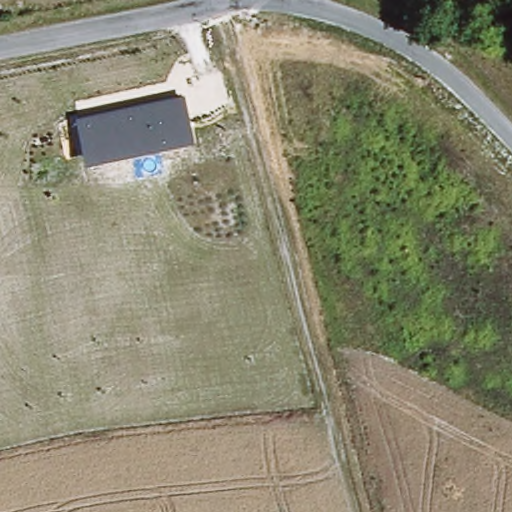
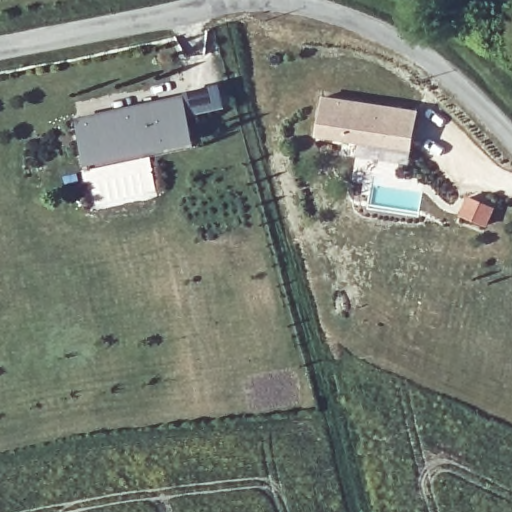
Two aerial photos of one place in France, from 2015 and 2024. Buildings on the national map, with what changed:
unchanged [(186,95),(197,143),(89,166),(79,119),(186,95)]
new [(316,135),(324,96),(417,111),(412,150),(316,135)]

